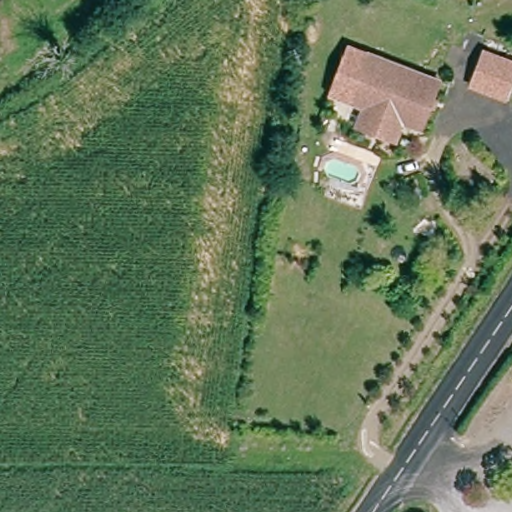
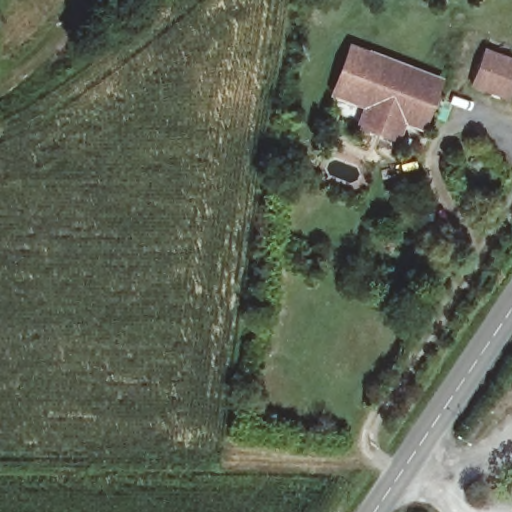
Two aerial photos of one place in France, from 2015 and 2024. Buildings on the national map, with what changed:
unchanged [(362,123),(363,122),(369,105),(370,104),(336,91),(353,45),(443,78),(427,124),(407,117),(400,137),(362,123)]
unchanged [(485,46),(512,55),(512,93),(474,80),(485,46)]

